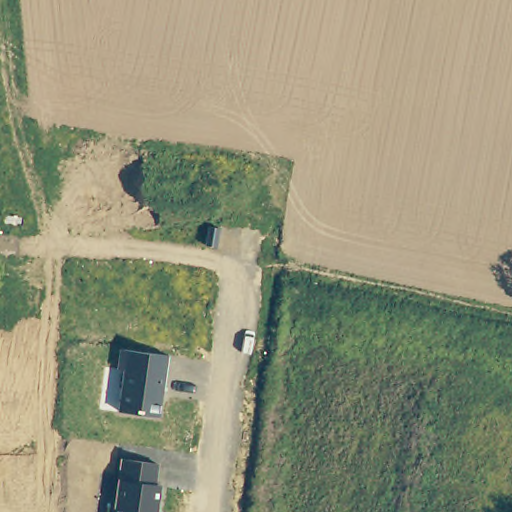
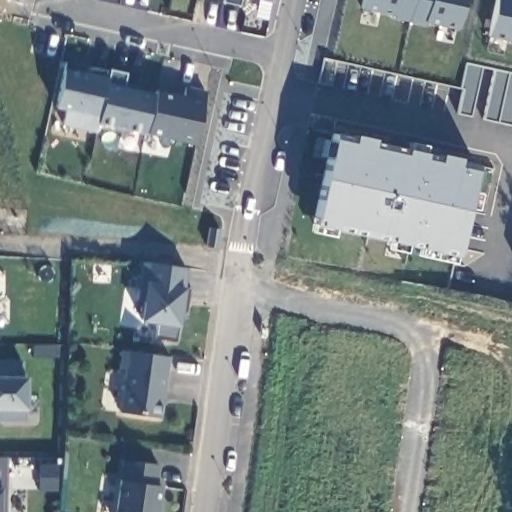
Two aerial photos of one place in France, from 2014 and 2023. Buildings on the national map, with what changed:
new [(241,0),(240,5),(221,2),(221,0),(241,0)]
new [(268,0),(273,0),(272,1),(268,0)]
new [(361,5),(363,0),(465,0),(457,26),(361,5)]
new [(494,0),(512,0),(512,37),(488,32),(494,0)]
new [(95,133),(61,125),(63,110),(52,108),(61,68),(106,77),(95,133)]
new [(192,144),(143,134),(152,88),(181,94),(184,84),(206,89),(192,144)]
new [(459,255),(312,222),(332,134),(480,165),(459,255)]
new [(155,323),(137,321),(140,302),(135,300),(141,262),(187,267),(184,288),(189,289),(185,317),(179,317),(177,325),(175,342),(152,339),(155,323)]
unchanged [(160,419),(117,413),(122,371),(116,369),(119,349),(169,355),(160,419)]
new [(25,376),(25,409),(25,419),(0,419),(0,359),(22,359),(25,376)]
new [(5,511),(0,510),(0,454),(5,454),(5,511)]
unchanged [(155,484),(161,485),(158,512),(113,512),(121,459),(159,463),(155,484)]

